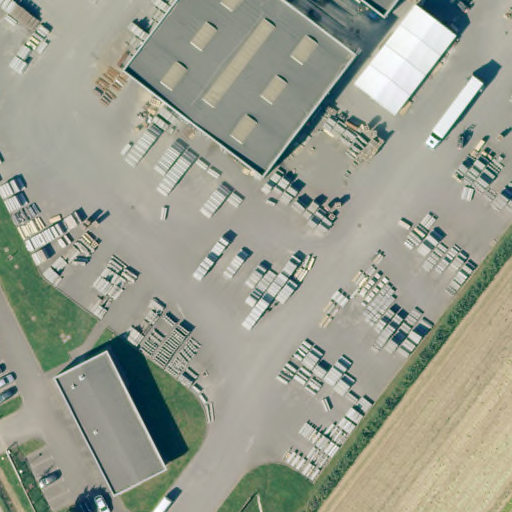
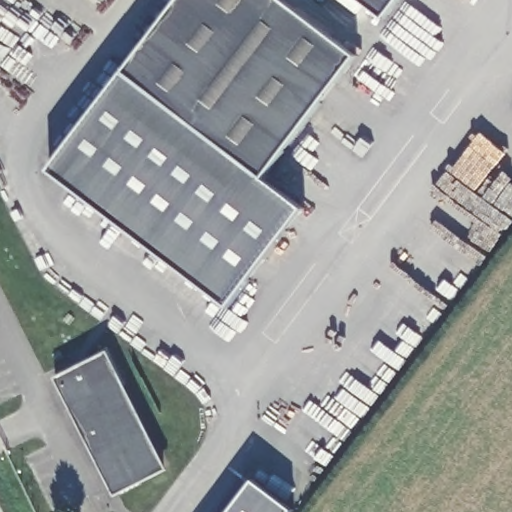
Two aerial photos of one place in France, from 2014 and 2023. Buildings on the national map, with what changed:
unchanged [(281,0),(353,55),(323,95),(260,178),(120,70),(173,0),(281,0)]
unchanged [(356,0),(396,0),(381,19),(356,0)]
new [(355,84),(416,5),(456,35),(396,115),(355,84)]
new [(230,306),(51,170),(124,74),(260,178),(261,176),(303,209),(230,306)]
unchanged [(114,495),(71,410),(54,376),(107,349),(125,383),(167,468),(114,495)]
new [(291,512),(231,512),(255,480),(293,510),(291,512)]

